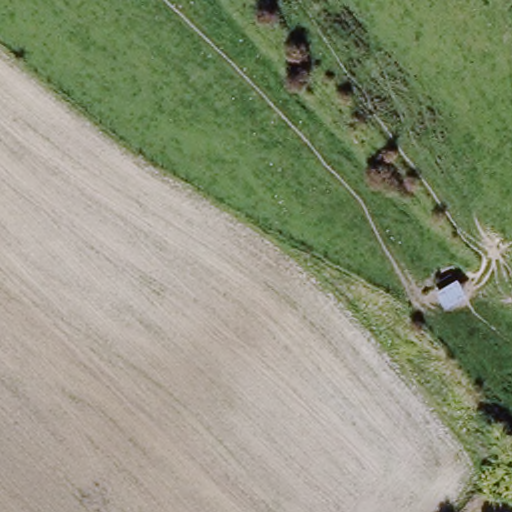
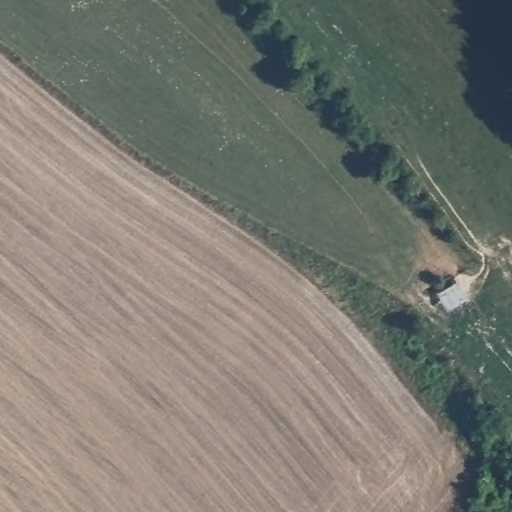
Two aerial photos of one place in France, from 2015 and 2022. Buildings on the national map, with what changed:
unchanged [(445,311),(435,293),(455,280),(467,298),(445,311)]

